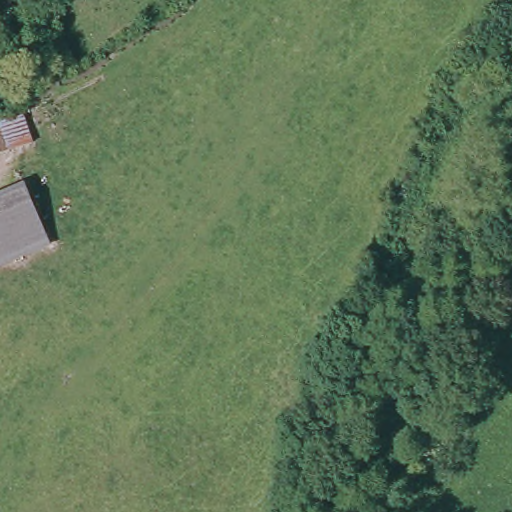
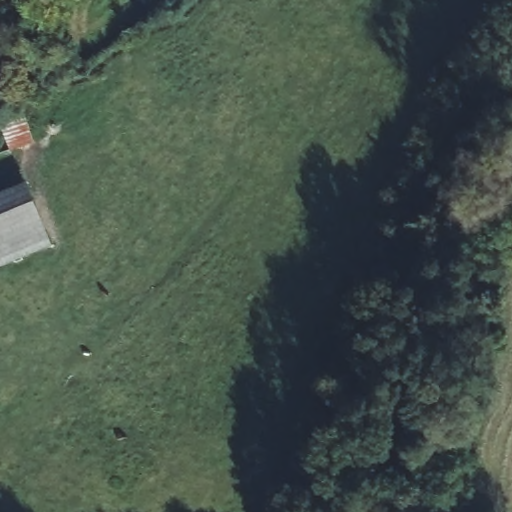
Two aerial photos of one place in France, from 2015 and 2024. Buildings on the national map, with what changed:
unchanged [(9,157),(1,129),(27,118),(36,147),(9,157)]
unchanged [(0,263),(0,188),(13,181),(45,237),(0,263)]

